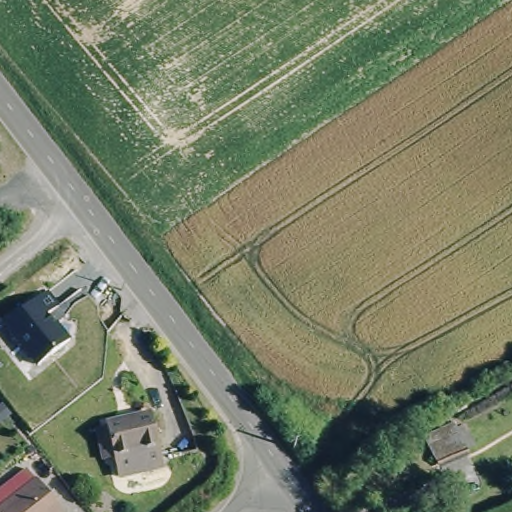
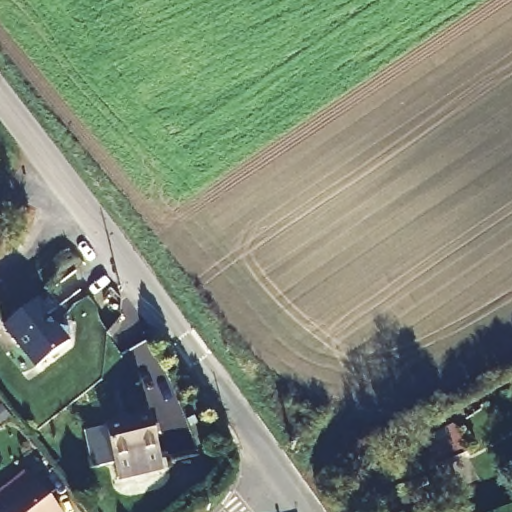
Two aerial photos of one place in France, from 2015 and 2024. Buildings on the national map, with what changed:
unchanged [(38,369),(3,325),(50,289),(63,305),(49,314),(69,340),(38,369)]
unchanged [(119,413),(120,415),(130,413),(129,411),(148,407),(159,461),(114,471),(102,417),(119,413)]
unchanged [(447,425),(459,451),(429,464),(418,438),(447,425)]
unchanged [(56,512),(0,512),(0,508),(33,482),(56,512)]

